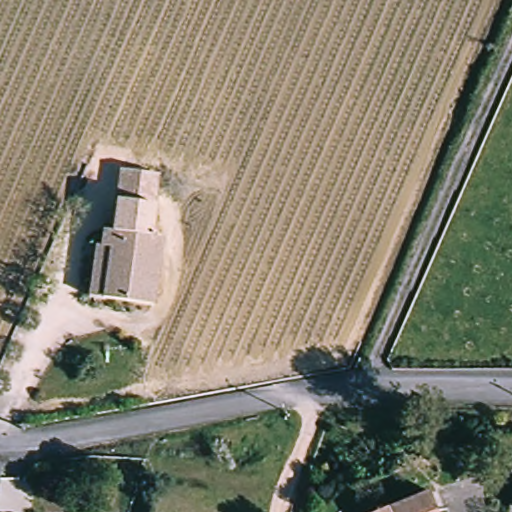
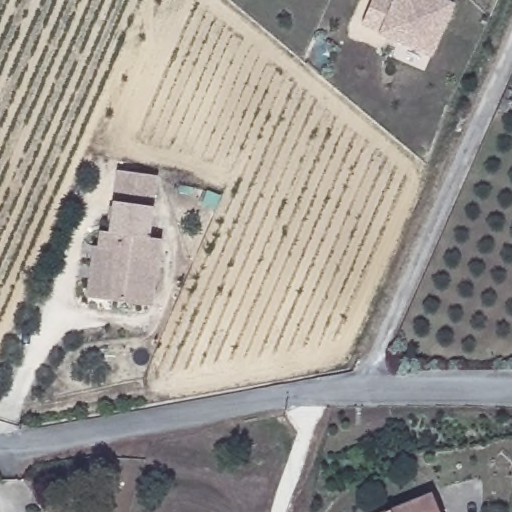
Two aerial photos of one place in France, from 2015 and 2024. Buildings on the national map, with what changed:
new [(379,35),(361,26),(372,0),(447,0),(455,4),(433,56),(379,35)]
unchanged [(95,247),(102,248),(104,233),(111,234),(115,204),(151,209),(147,240),(159,241),(150,307),(102,301),(88,299),(95,247)]
unchanged [(432,490),(440,510),(441,512),(381,512),(432,490)]

